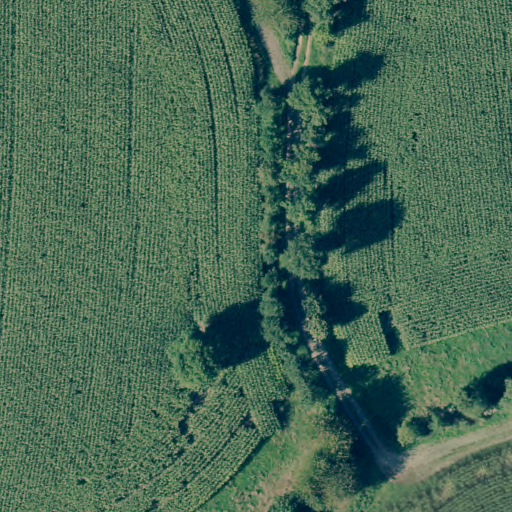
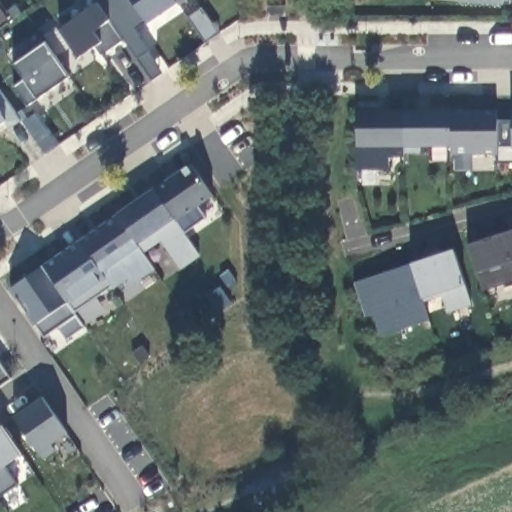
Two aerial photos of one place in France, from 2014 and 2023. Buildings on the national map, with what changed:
new [(202,7),(220,33),(206,44),(188,18),(190,16),(182,4),(179,6),(175,0),(197,0),(202,8),(202,7)]
new [(503,6),(458,2),(458,0),(510,0),(510,4),(503,6)]
new [(59,30),(97,3),(110,20),(123,40),(101,55),(98,45),(79,59),(59,30)]
new [(15,87),(26,79),(15,64),(46,44),(70,77),(28,107),(15,87)]
new [(20,121),(9,130),(6,121),(0,125),(0,91),(20,121)]
new [(511,117),(511,110),(512,109),(512,163),(499,164),(498,119),(511,117)]
new [(404,111),(450,110),(497,110),(498,119),(499,154),(451,154),(452,147),(404,146),(402,111),(404,111)]
new [(402,111),(405,157),(389,157),(389,170),(358,170),(358,147),(355,111),(402,111)]
new [(45,155),(29,132),(22,122),(37,112),(44,122),(60,145),(45,155)]
new [(38,322),(35,325),(10,290),(117,214),(191,164),(214,196),(198,207),(206,219),(185,233),(201,257),(181,271),(161,243),(144,255),(155,269),(135,284),(130,277),(114,290),(112,286),(75,312),(85,327),(67,340),(59,327),(45,336),(38,322)]
new [(471,246),(512,232),(512,283),(486,292),(471,246)]
new [(411,263),(453,250),(465,285),(472,305),(449,312),(442,297),(423,303),(410,265),(411,263)]
new [(429,320),(380,336),(374,313),(367,317),(355,283),(410,265),(429,320)]
new [(13,379),(0,388),(0,361),(13,379)]
new [(67,433),(53,444),(55,452),(44,460),(41,452),(38,454),(13,417),(42,397),(67,433)]
new [(2,426),(22,455),(0,469),(0,427),(2,426)]

